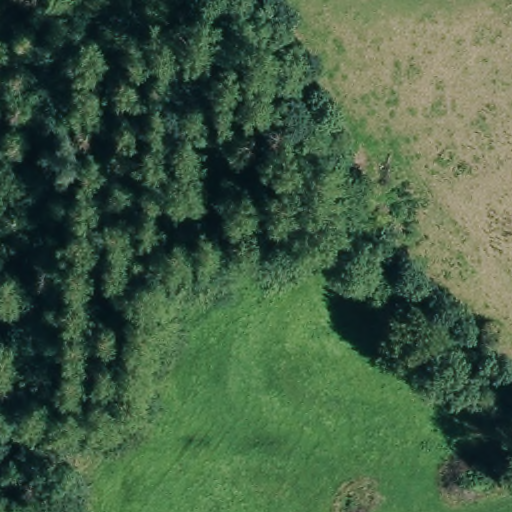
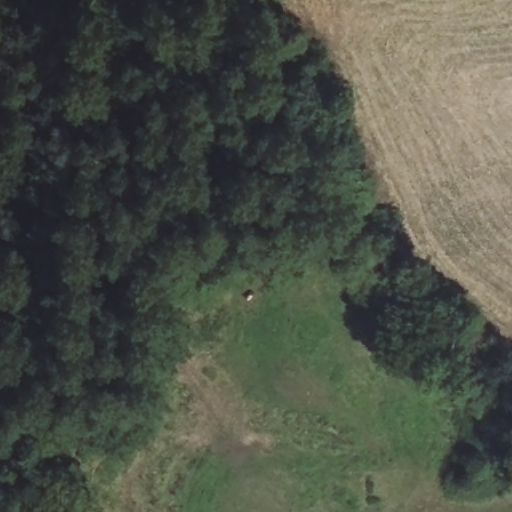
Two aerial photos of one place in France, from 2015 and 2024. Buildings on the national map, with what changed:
unchanged [(512,481),(452,496),(448,467),(512,452),(512,481)]

